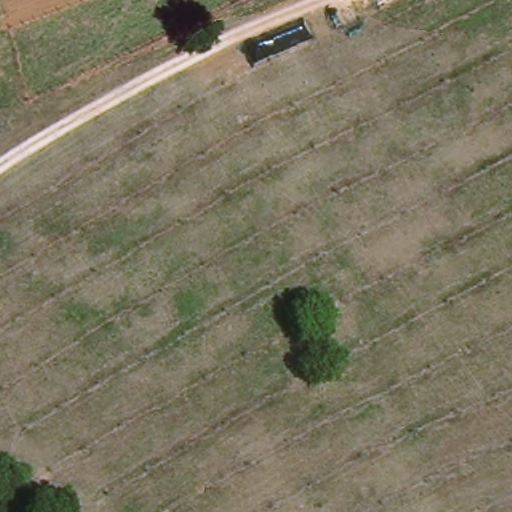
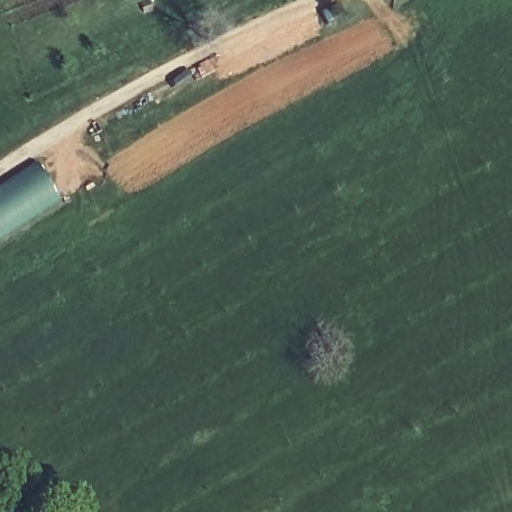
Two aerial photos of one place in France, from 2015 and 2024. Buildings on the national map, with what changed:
new [(0,242),(0,182),(33,161),(61,202),(0,242)]
unchanged [(379,398),(393,419),(378,429),(364,407),(379,398)]

